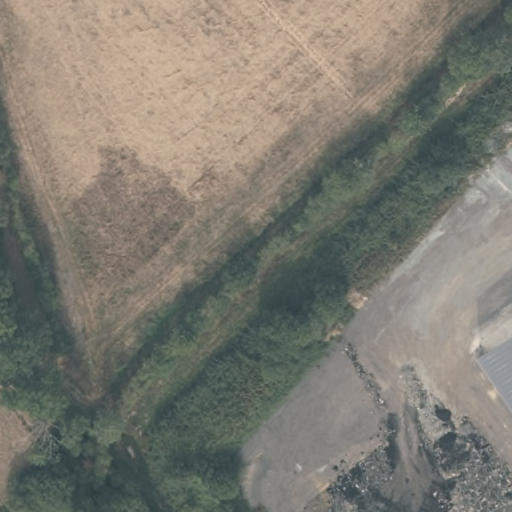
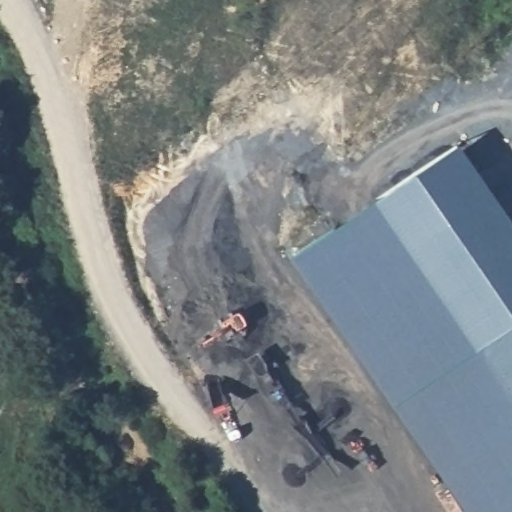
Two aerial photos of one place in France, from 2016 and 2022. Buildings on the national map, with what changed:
new [(295,254),(462,142),(512,215),(512,324),(478,346),(494,369),(512,395),(512,512),(469,512),(295,254)]
unchanged [(478,346),(512,324),(512,396),(478,346)]

